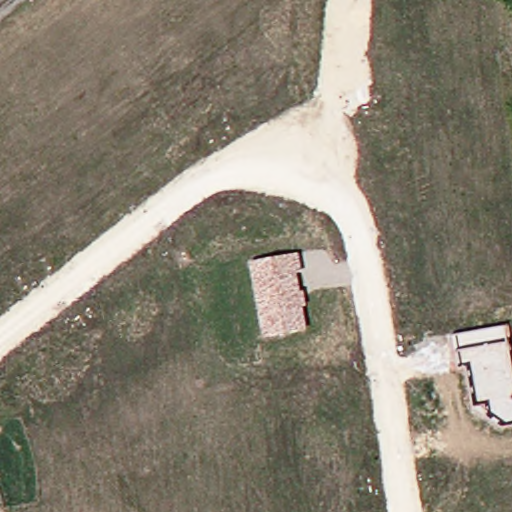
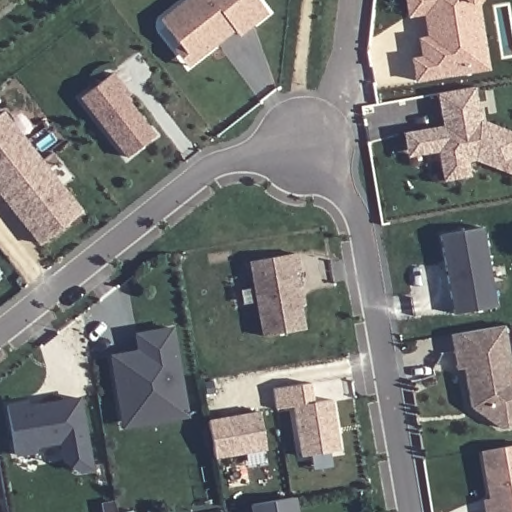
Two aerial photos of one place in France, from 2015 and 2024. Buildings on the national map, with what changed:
new [(190,0),(261,0),(270,11),(242,34),(237,29),(220,42),(203,54),(190,65),(179,50),(185,46),(164,20),(190,0)]
new [(490,70),(415,83),(411,57),(421,55),(417,38),(427,36),(424,15),(409,18),(405,0),(483,0),(479,6),(490,70)]
unchanged [(126,156),(80,98),(114,73),(130,94),(127,99),(154,134),(126,156)]
new [(424,129),(444,126),(438,94),(475,86),(481,120),(512,132),(512,165),(509,173),(467,156),(471,176),(444,181),(439,151),(428,153),(408,156),(404,133),(424,129)]
new [(81,213),(42,244),(0,192),(0,114),(2,113),(81,213)]
new [(509,173),(512,165),(512,174),(509,173)]
new [(483,228),(497,307),(455,314),(441,235),(483,228)]
unchanged [(248,262),(297,253),(301,273),(295,273),(299,292),(302,291),(305,307),(300,307),(304,329),(262,337),(248,262)]
unchanged [(503,327),(512,372),(512,427),(510,431),(470,408),(464,369),(456,371),(450,335),(503,327)]
new [(131,353),(140,351),(137,334),(172,329),(187,417),(154,422),(125,427),(122,414),(112,356),(131,353)]
new [(29,407),(44,404),(80,398),(92,469),(79,471),(64,463),(36,467),(34,455),(16,457),(7,405),(28,402),(29,407)]
new [(334,401),(342,452),(304,457),(296,406),(334,401)]
new [(262,414),(267,451),(217,459),(211,422),(262,414)]
new [(485,451),(512,446),(512,512),(490,512),(489,508),(487,500),(494,499),(485,451)]
new [(255,507),(296,499),(298,512),(256,512),(255,507)]

